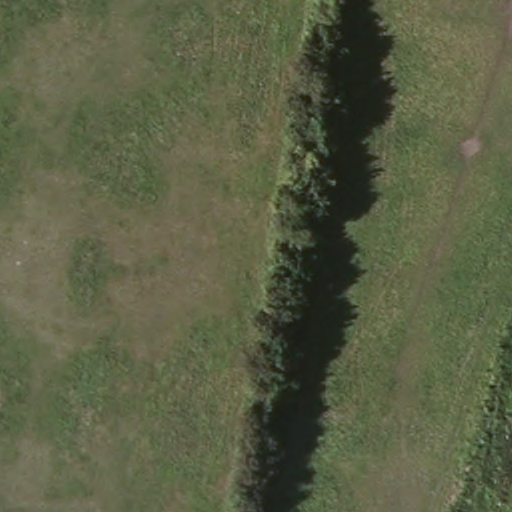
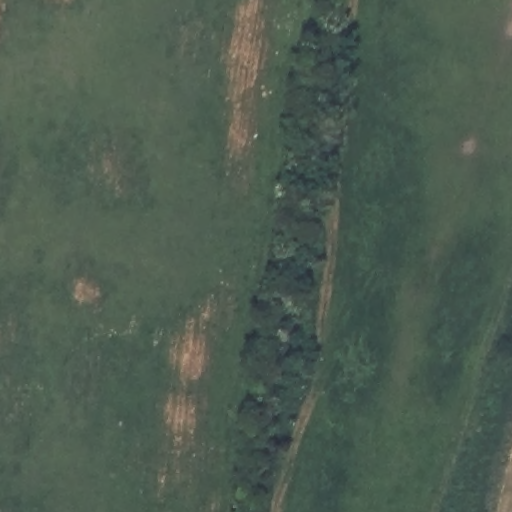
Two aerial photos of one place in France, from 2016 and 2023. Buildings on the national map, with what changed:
[]

